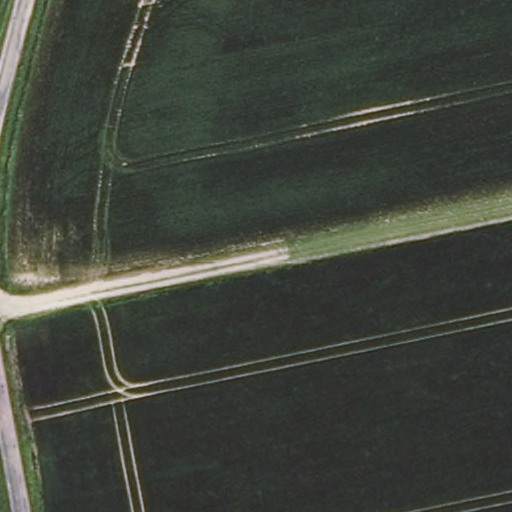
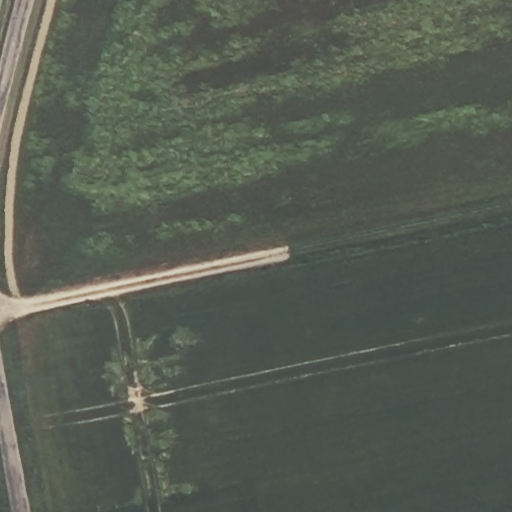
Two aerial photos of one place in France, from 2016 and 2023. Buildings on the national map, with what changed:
[]

